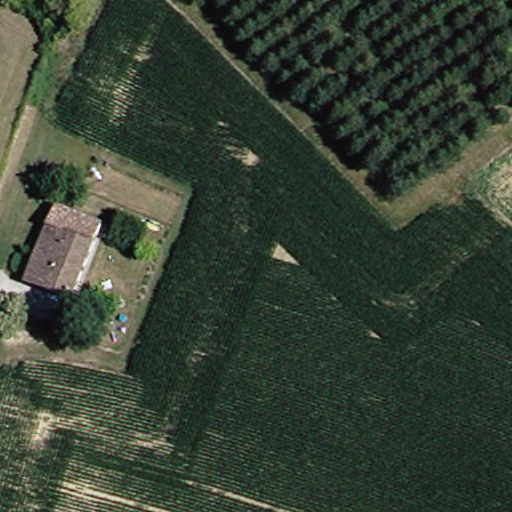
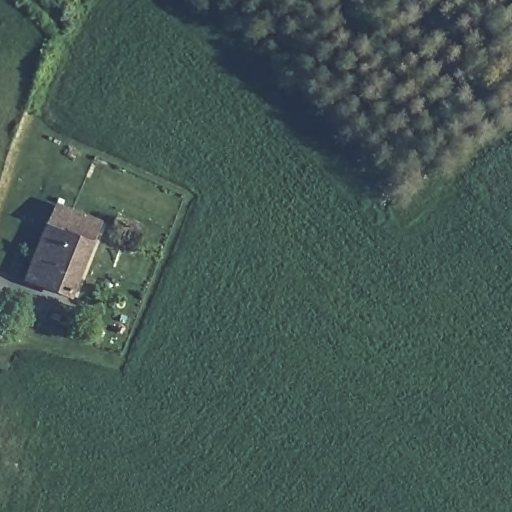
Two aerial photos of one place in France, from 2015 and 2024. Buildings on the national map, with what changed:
unchanged [(16,282),(41,226),(46,209),(91,229),(84,245),(62,302),(16,282)]

